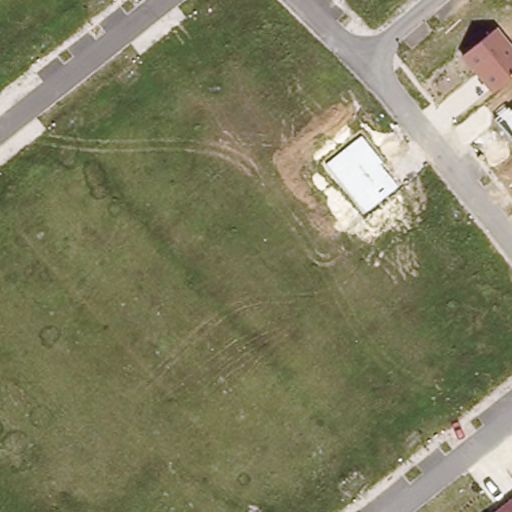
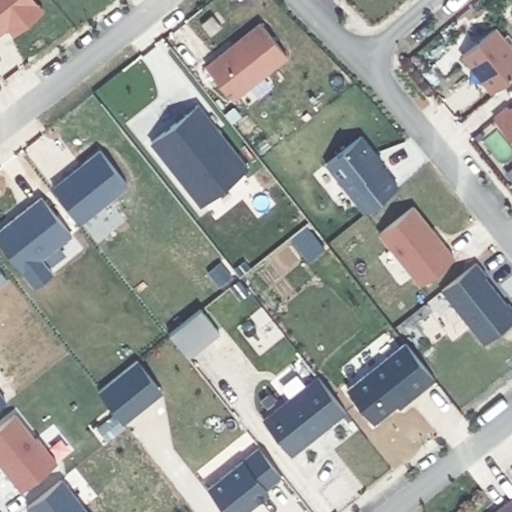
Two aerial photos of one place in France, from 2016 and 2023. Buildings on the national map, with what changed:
new [(261,24),(288,57),(233,101),(206,67),(261,24)]
unchanged [(512,48),(512,77),(492,95),(461,57),(495,29),(512,48)]
new [(198,106),(248,168),(200,205),(150,142),(198,106)]
unchanged [(511,110),(512,109),(512,141),(494,119),(509,108),(511,110)]
unchanged [(362,136),(384,162),(381,165),(398,186),(365,212),(326,164),(362,136)]
new [(41,197),(72,235),(43,259),(53,273),(36,287),(0,242),(0,228),(41,197)]
new [(414,207),(455,258),(421,286),(408,268),(410,267),(394,246),(391,247),(381,234),(414,207)]
new [(487,276),(486,277),(508,305),(509,303),(512,307),(512,323),(485,345),(442,291),(477,263),(487,276)]
new [(201,310),(220,333),(188,358),(170,335),(201,310)]
new [(405,342),(434,381),(410,400),(407,396),(373,422),(346,390),(405,342)]
new [(137,360),(162,392),(125,423),(98,390),(137,360)]
new [(319,377),(347,412),(292,456),(264,421),(319,377)]
new [(16,416),(35,440),(37,438),(58,465),(22,492),(0,465),(0,428),(16,416)]
new [(259,446),(282,476),(266,488),(269,492),(245,512),(228,512),(208,487),(245,457),(259,446)]
unchanged [(495,512),(512,499),(512,512),(495,512)]

